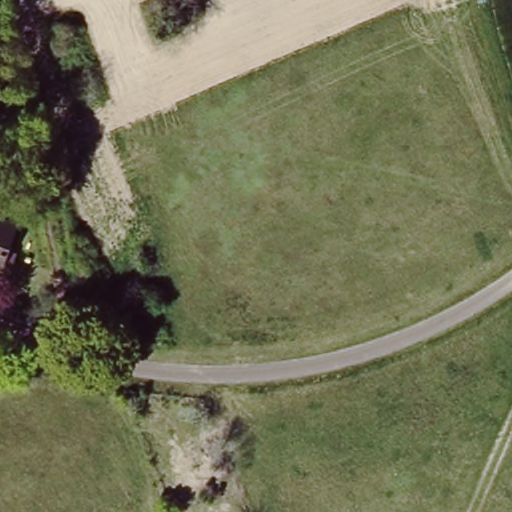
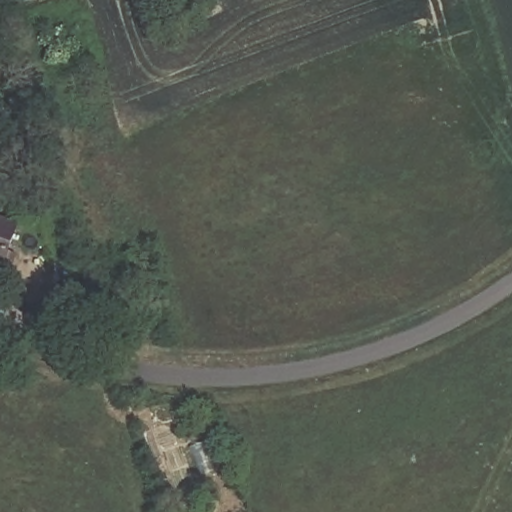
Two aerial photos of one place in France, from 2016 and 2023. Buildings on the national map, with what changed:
unchanged [(5,258),(0,258),(0,228),(4,227),(4,237),(5,258)]
unchanged [(92,318),(57,296),(82,257),(88,248),(125,267),(100,304),(92,318)]

